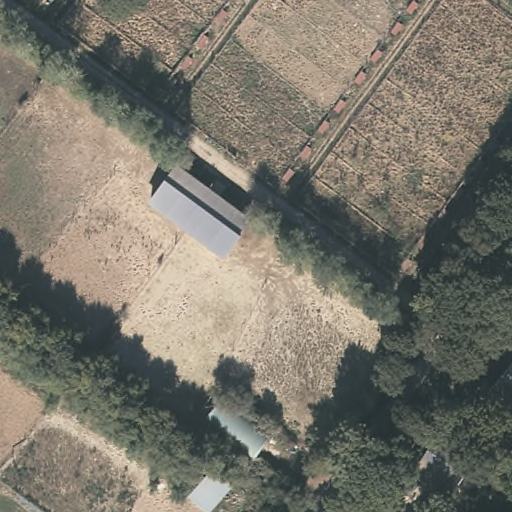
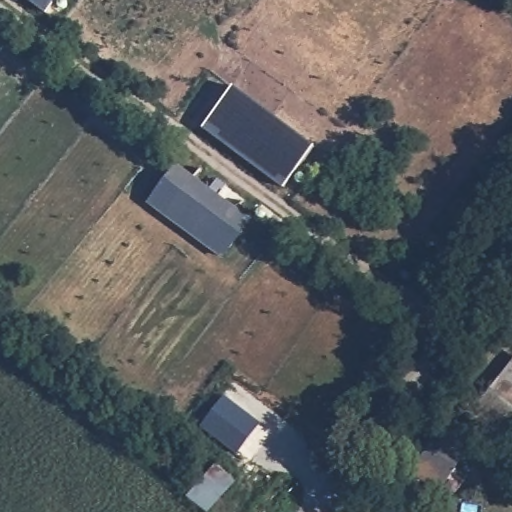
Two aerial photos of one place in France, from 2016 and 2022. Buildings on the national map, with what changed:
new [(46,13),(28,0),(57,0),(46,13)]
new [(234,86),(314,145),(283,186),(202,128),(234,86)]
unchanged [(178,161),(255,216),(227,253),(153,200),(178,161)]
unchanged [(512,366),(512,394),(498,381),(512,366)]
unchanged [(220,398),(269,431),(251,457),(203,425),(220,398)]
unchanged [(243,474),(215,507),(191,491),(216,457),(243,474)]

